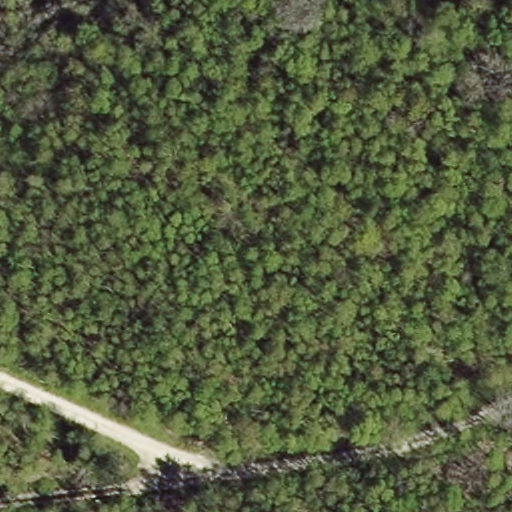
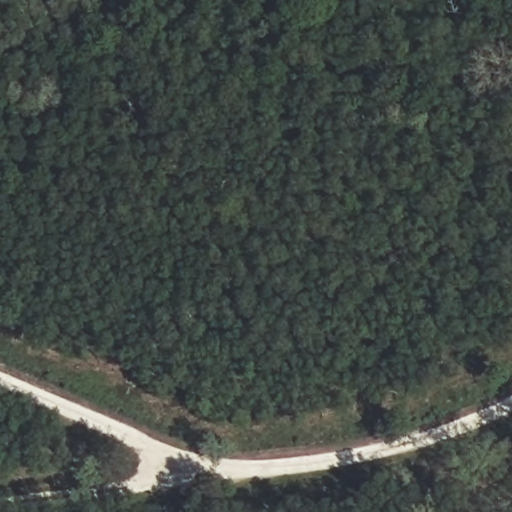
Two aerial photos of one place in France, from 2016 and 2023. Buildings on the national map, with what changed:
[]

